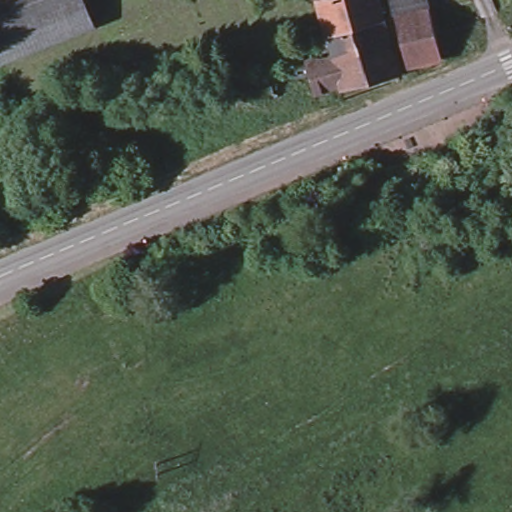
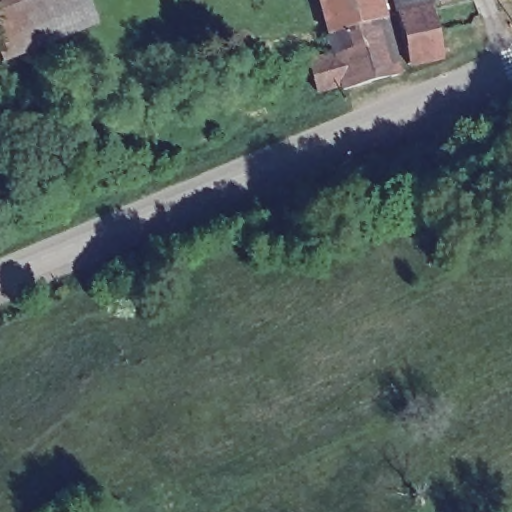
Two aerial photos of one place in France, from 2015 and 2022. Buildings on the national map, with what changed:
unchanged [(97,25),(4,65),(0,55),(0,0),(87,0),(97,25)]
unchanged [(385,17),(390,35),(400,71),(343,88),(342,81),(317,88),(308,57),(333,50),(328,30),(320,0),(381,0),(385,17)]
unchanged [(409,60),(402,31),(398,15),(395,0),(431,0),(432,5),(433,8),(437,24),(443,52),(409,60)]

